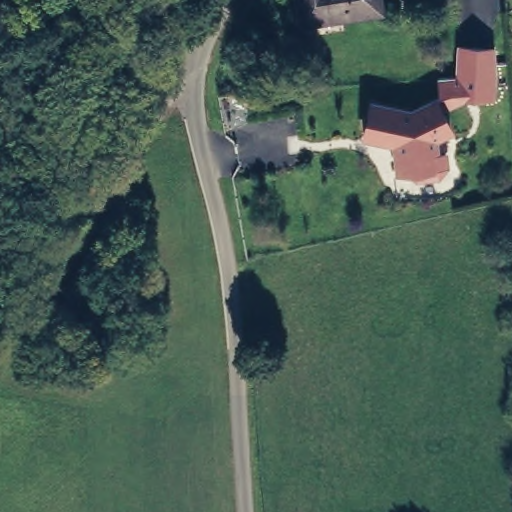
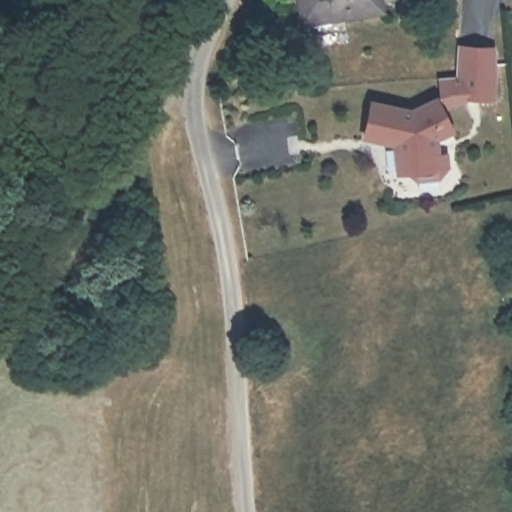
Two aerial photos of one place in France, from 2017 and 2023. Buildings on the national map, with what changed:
unchanged [(380,0),(383,12),(344,21),(343,15),(303,22),(298,0),(380,0)]
unchanged [(489,95),(464,94),(439,107),(449,127),(433,135),(435,153),(444,152),(446,165),(438,175),(416,178),(406,169),(398,170),(395,145),(397,144),(394,138),(390,140),(363,134),(369,101),(409,110),(438,95),(436,75),(453,73),(454,44),(489,45),(491,70),(489,95)]

